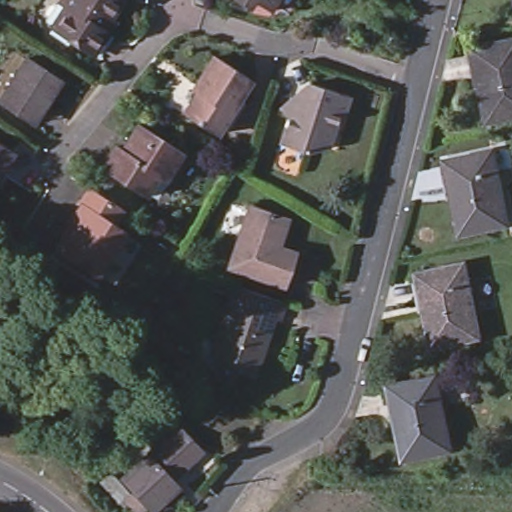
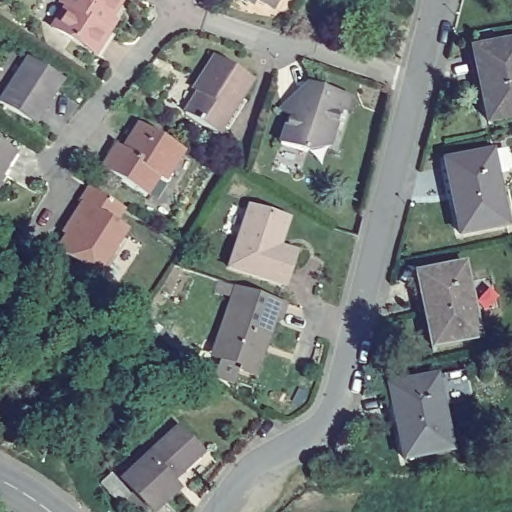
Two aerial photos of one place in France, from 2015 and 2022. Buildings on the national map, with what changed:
unchanged [(57,25),(70,4),(65,0),(125,0),(115,16),(115,15),(107,27),(114,30),(100,52),(57,25)]
unchanged [(277,11),(260,1),(256,9),(241,0),(283,0),(277,11)]
unchanged [(512,41),(512,118),(489,122),(474,49),(512,41)]
unchanged [(187,115),(202,89),(199,86),(217,57),(254,81),(219,135),(187,115)]
unchanged [(27,60),(64,82),(45,110),(41,107),(31,124),(0,104),(27,60)]
unchanged [(297,91),(311,80),(352,92),(347,109),(342,107),(330,144),(312,139),(309,149),(281,141),(297,91)]
unchanged [(123,151),(140,125),(185,153),(165,184),(159,179),(162,175),(123,151)]
unchanged [(17,154),(0,181),(0,144),(17,154)]
unchanged [(146,198),(102,169),(117,146),(123,151),(162,175),(159,179),(146,198)]
unchanged [(445,162),(493,152),(507,226),(460,236),(445,162)]
unchanged [(114,227),(125,235),(98,280),(58,255),(68,239),(65,237),(70,227),(82,207),(80,206),(90,190),(124,212),(114,227)]
unchanged [(252,207),(290,221),(281,250),(297,255),(287,289),(230,269),(252,207)]
unchanged [(419,275),(466,265),(481,338),(433,347),(419,275)]
unchanged [(217,341),(237,282),(287,300),(282,317),(277,315),(257,373),(241,368),(242,363),(223,357),(213,353),(217,341)]
unchanged [(405,461),(390,387),(438,377),(467,372),(474,401),(444,407),(452,452),(405,461)]
unchanged [(178,478),(175,476),(169,481),(179,492),(157,512),(150,512),(123,482),(179,431),(202,457),(178,478)]
unchanged [(312,464),(335,462),(336,477),(314,478),(312,464)]

